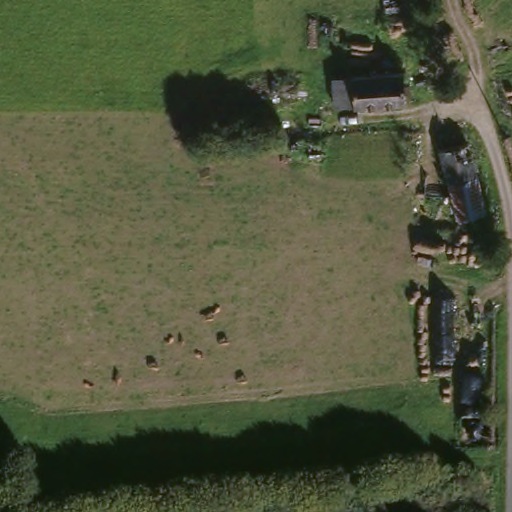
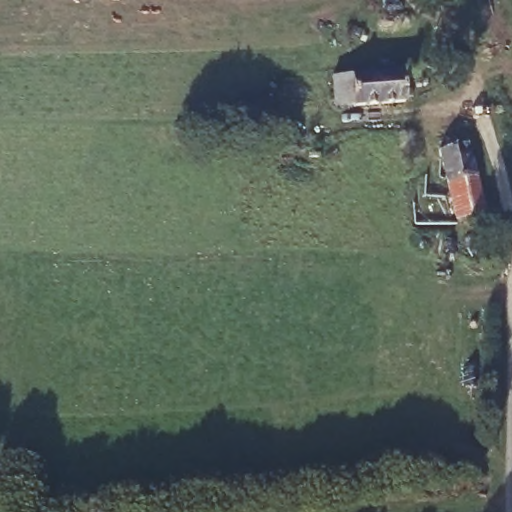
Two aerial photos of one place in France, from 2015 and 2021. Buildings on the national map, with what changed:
unchanged [(402,103),(349,104),(348,75),(401,73),(402,103)]
unchanged [(459,221),(438,150),(466,141),(487,213),(459,221)]

